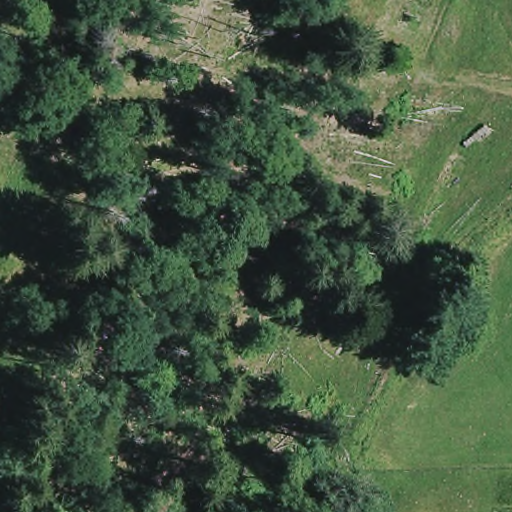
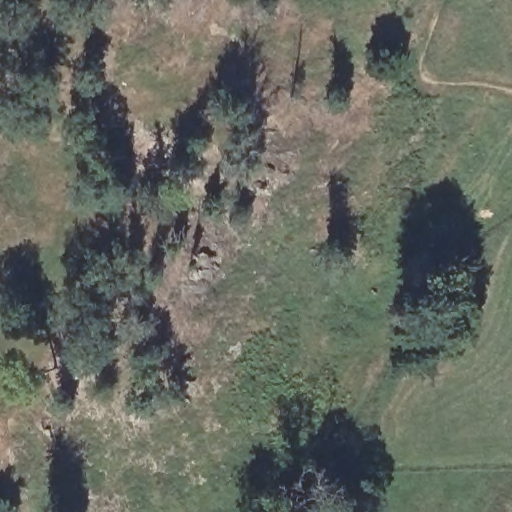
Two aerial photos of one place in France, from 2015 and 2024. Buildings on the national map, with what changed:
[]

